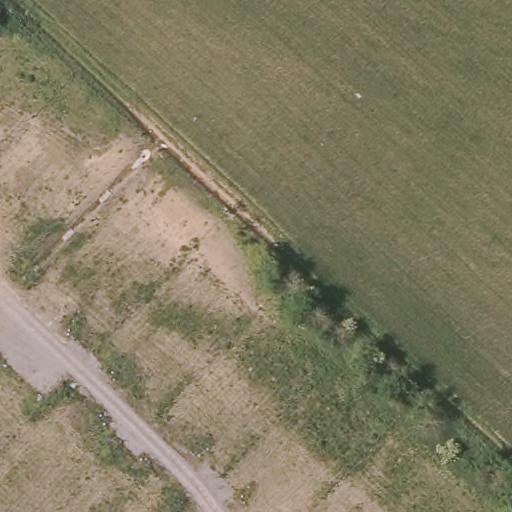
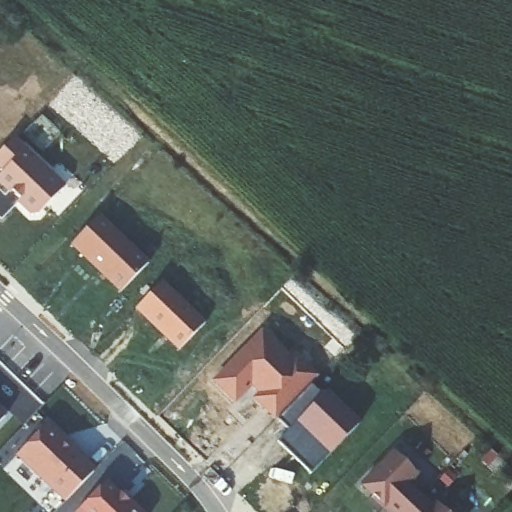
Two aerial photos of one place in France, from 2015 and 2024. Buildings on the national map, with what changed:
new [(38,214),(30,215),(18,202),(21,199),(13,190),(8,194),(0,185),(0,174),(2,172),(0,170),(0,151),(14,135),(66,185),(38,214)]
new [(69,245),(100,215),(148,261),(118,293),(69,245)]
new [(134,310),(162,280),(204,322),(178,350),(134,310)]
new [(211,381),(261,329),(294,360),(299,355),(319,375),(310,383),(276,418),(274,420),(252,399),(258,393),(251,387),(235,405),(211,381)]
new [(321,395),(327,389),(361,421),(311,473),(277,441),(289,430),(276,418),(310,383),(321,395)]
new [(6,414),(0,420),(0,408),(6,414)]
new [(15,456),(49,421),(96,467),(64,502),(15,456)]
new [(403,512),(392,512),(362,483),(394,450),(418,472),(409,482),(421,493),(403,512)]
new [(107,479),(141,512),(75,512),(107,479)]
new [(421,493),(433,505),(437,501),(448,512),(403,512),(421,493)]

